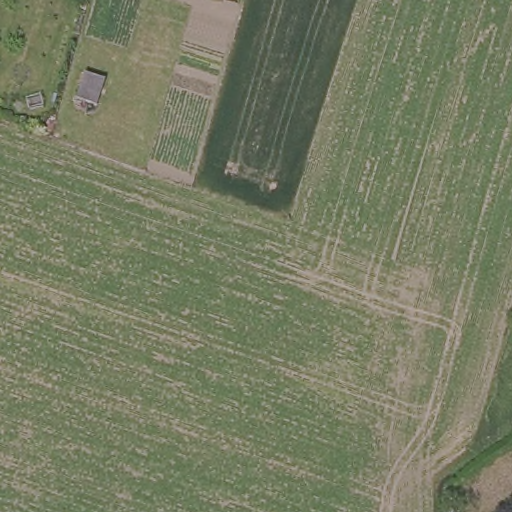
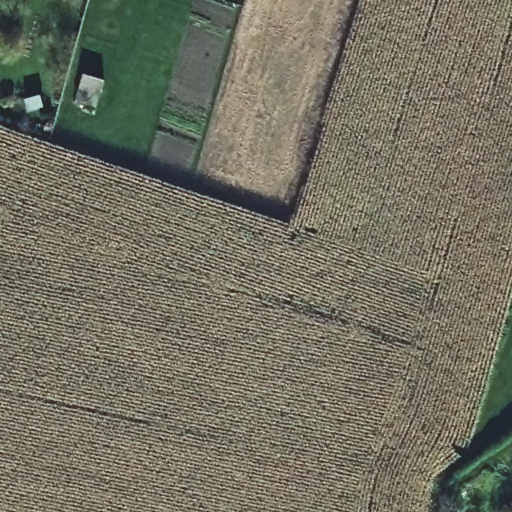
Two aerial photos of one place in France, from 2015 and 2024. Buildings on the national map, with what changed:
[]

